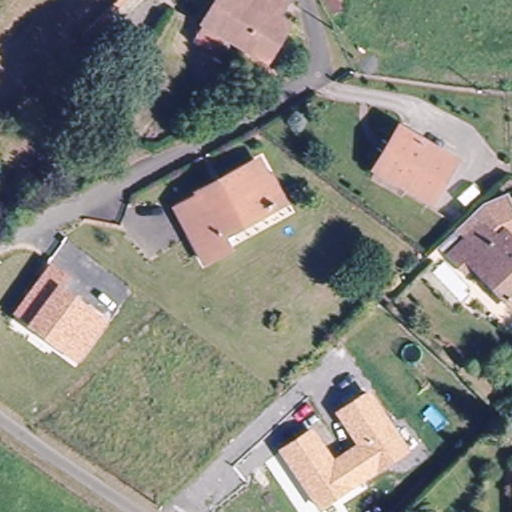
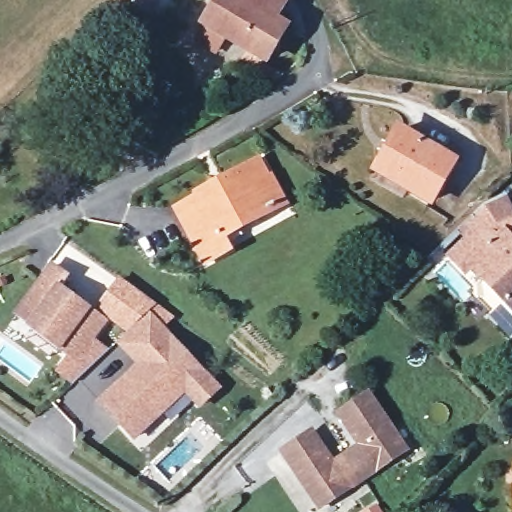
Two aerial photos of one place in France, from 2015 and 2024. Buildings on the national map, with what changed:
unchanged [(244,49),(223,36),(213,52),(190,39),(200,23),(214,0),(280,0),(268,19),(280,26),(261,59),(257,66),(240,57),(244,49)]
unchanged [(322,0),(338,0),(343,12),(329,17),(322,0)]
unchanged [(401,129),(454,160),(429,201),(377,170),(401,129)]
unchanged [(193,199),(254,167),(263,184),(265,183),(279,207),(268,213),(217,241),(224,254),(200,267),(171,214),(194,202),(193,199)]
unchanged [(469,224),(474,219),(476,217),(500,207),(512,235),(512,237),(499,242),(492,249),(469,224)]
unchanged [(512,256),(512,320),(511,321),(468,274),(458,283),(443,268),(462,251),(452,240),(469,224),(492,249),(499,242),(512,256)]
new [(136,441),(96,401),(135,364),(116,344),(129,333),(110,320),(97,339),(108,349),(75,382),(55,372),(69,355),(14,313),(49,262),(70,276),(62,285),(92,308),(120,277),(175,317),(165,327),(223,389),(200,410),(184,394),(136,441)]
unchanged [(333,459),(356,445),(335,412),(370,389),(411,452),(318,510),(278,450),(313,427),(333,459)]

